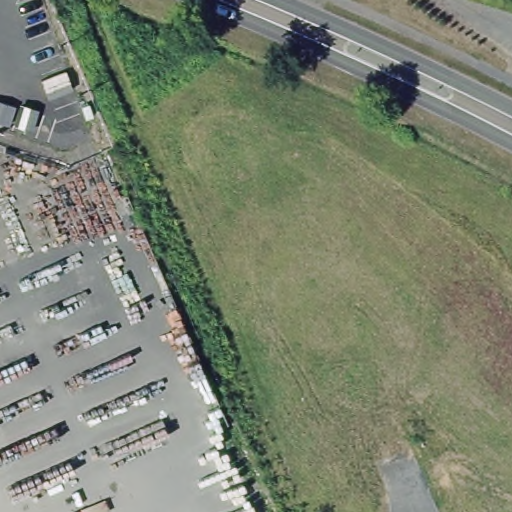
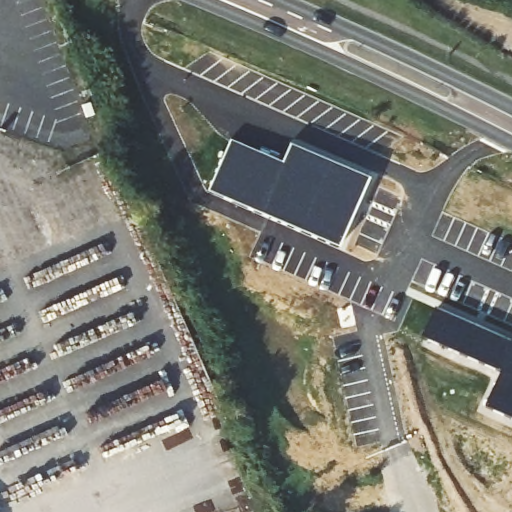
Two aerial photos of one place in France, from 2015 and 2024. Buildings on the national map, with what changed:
new [(281,163),(289,145),(367,179),(336,248),(208,192),(229,140),(281,163)]
new [(424,339),(438,310),(512,343),(512,419),(488,409),(503,374),(424,339)]

